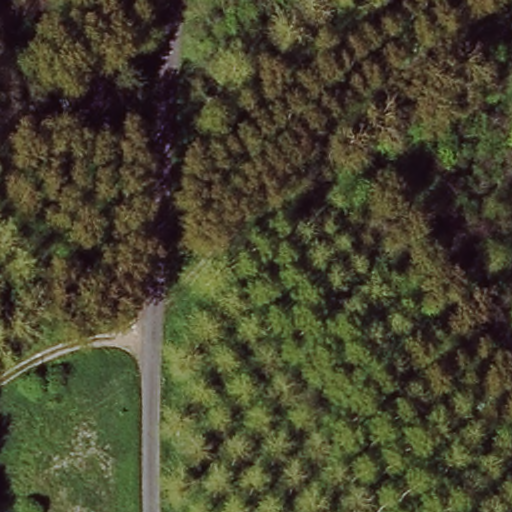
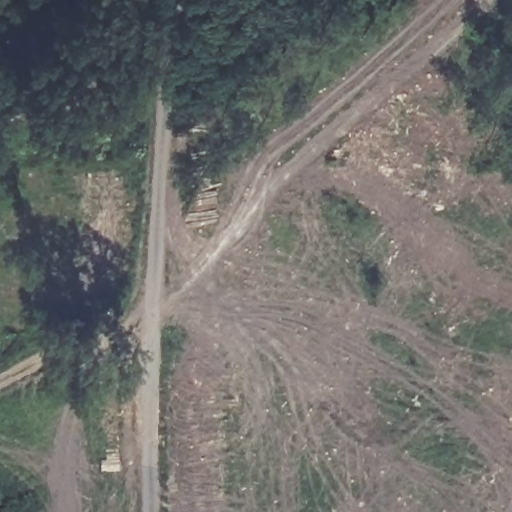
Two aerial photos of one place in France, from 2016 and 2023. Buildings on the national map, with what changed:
unchanged [(67,88),(97,77),(109,103),(78,117),(67,88)]
unchanged [(2,135),(21,137),(21,153),(0,153),(2,135)]

